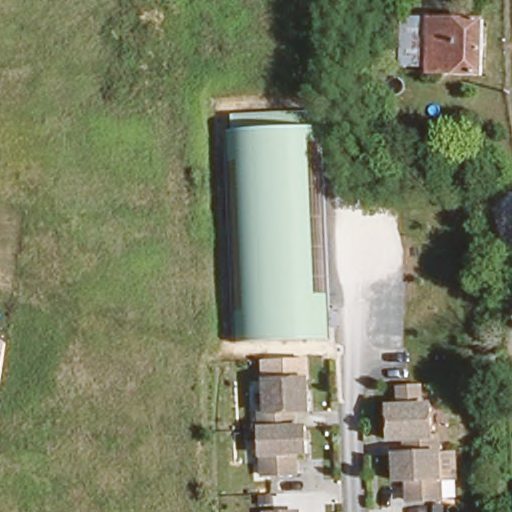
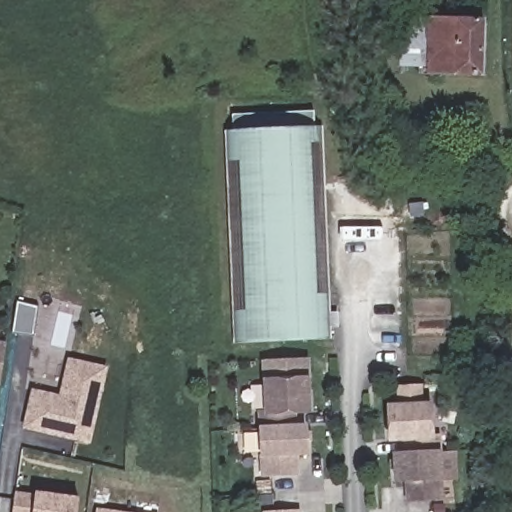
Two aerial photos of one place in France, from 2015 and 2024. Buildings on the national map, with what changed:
unchanged [(426,53),(407,52),(400,51),(400,14),(427,15),(426,53)]
unchanged [(432,15),(485,17),(483,75),(428,74),(428,66),(407,65),(407,52),(426,53),(427,15),(432,15)]
unchanged [(237,341),(230,124),(322,121),(331,338),(237,341)]
new [(11,332),(19,302),(40,307),(33,337),(11,332)]
unchanged [(0,384),(0,342),(7,343),(0,384)]
new [(90,444),(22,428),(31,388),(60,393),(67,358),(108,367),(90,444)]
unchanged [(310,455),(300,457),(300,474),(260,473),(259,412),(265,410),(263,378),(309,375),(308,411),(296,411),(296,422),(307,422),(310,455)]
unchanged [(435,432),(445,432),(444,501),(404,503),(404,484),(393,483),(392,447),(385,447),(382,401),(431,401),(435,432)]
new [(16,489),(79,498),(77,512),(13,512),(16,489)]
new [(97,508),(128,512),(96,512),(97,508)]
unchanged [(260,511),(295,509),(295,512),(261,512),(260,511)]

